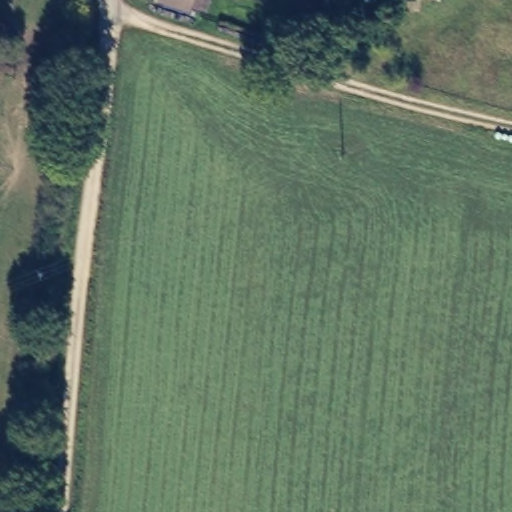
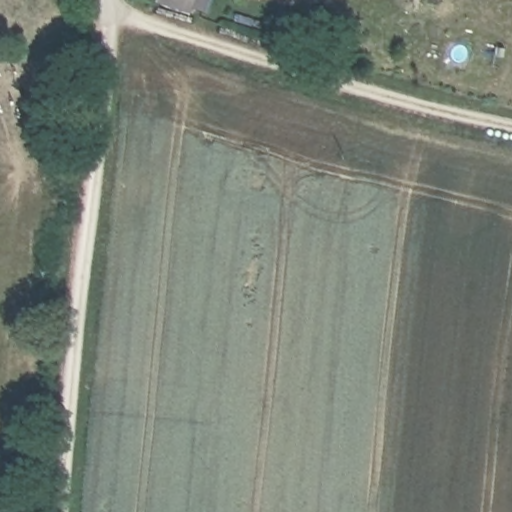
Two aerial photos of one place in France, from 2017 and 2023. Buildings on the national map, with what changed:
unchanged [(151,7),(154,0),(201,0),(194,19),(151,7)]

